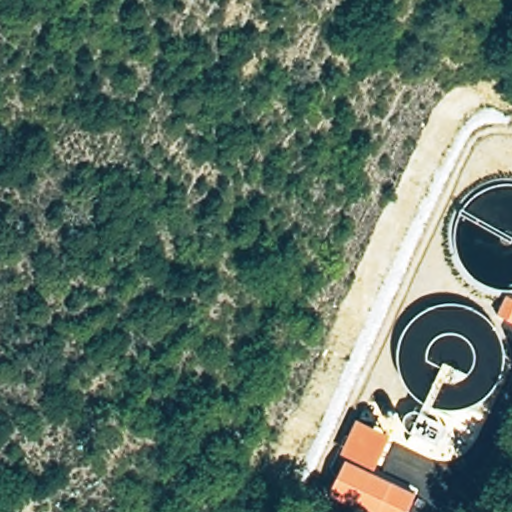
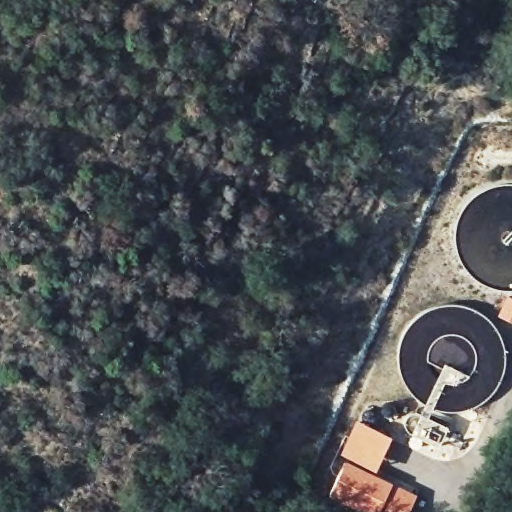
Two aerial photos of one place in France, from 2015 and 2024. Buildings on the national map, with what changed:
unchanged [(373,472),(390,483),(415,494),(406,512),(361,512),(328,497),(345,462),(338,458),(355,421),(390,436),(373,472)]

